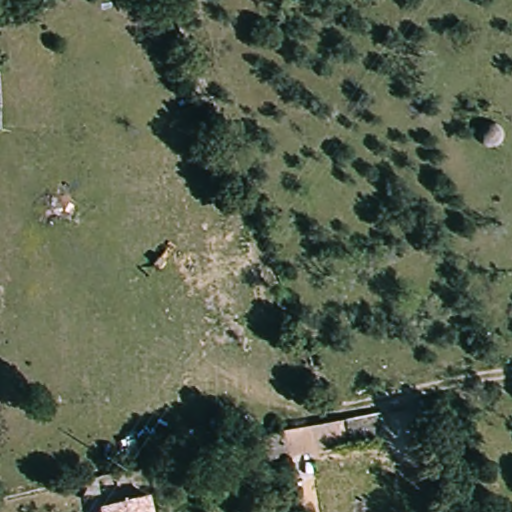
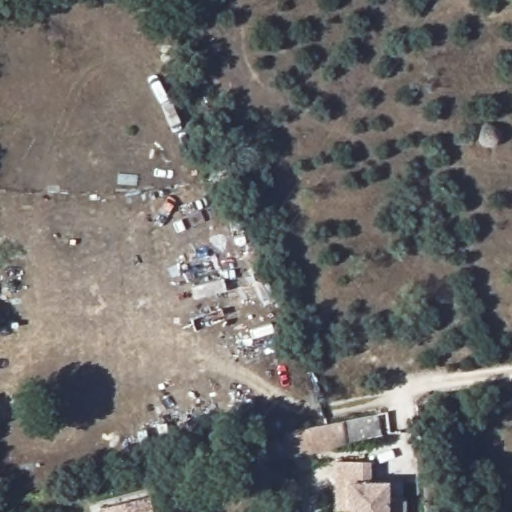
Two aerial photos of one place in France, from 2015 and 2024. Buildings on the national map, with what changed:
unchanged [(471,133),(474,127),(490,127),(495,133),(495,140),(491,145),(485,148),(478,148),(473,140),(471,133)]
unchanged [(254,437),(340,420),(346,447),(261,465),(254,437)]
new [(335,493),(332,472),(364,468),(367,490),(384,487),(386,504),(403,502),(404,512),(336,512),(335,493)]
unchanged [(91,508),(144,496),(147,512),(92,512),(91,508)]

